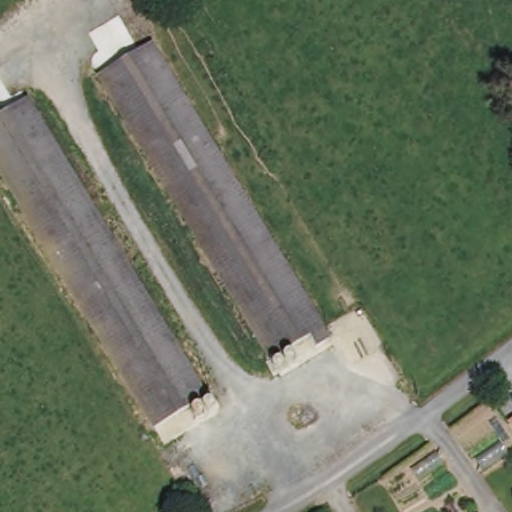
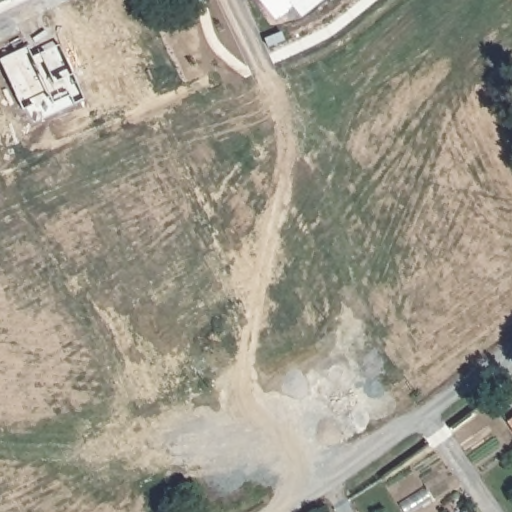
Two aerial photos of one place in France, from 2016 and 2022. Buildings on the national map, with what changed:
demolished [(146,47),(261,234),(328,340),(312,349),(306,340),(267,364),(234,309),(96,78),(146,47)]
demolished [(130,279),(202,402),(152,432),(57,273),(0,177),(0,121),(27,104),(130,279)]
unchanged [(512,418),(512,431),(506,422),(512,418)]

